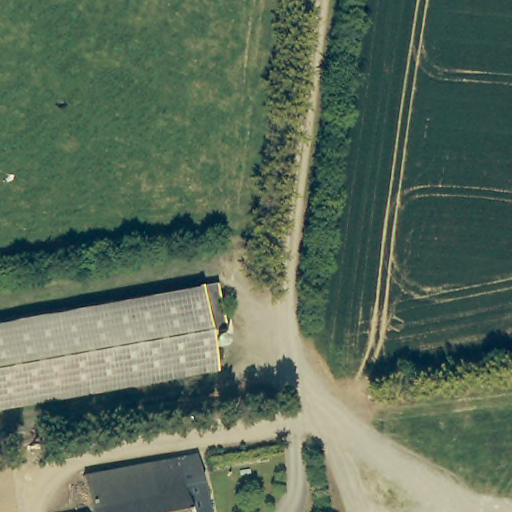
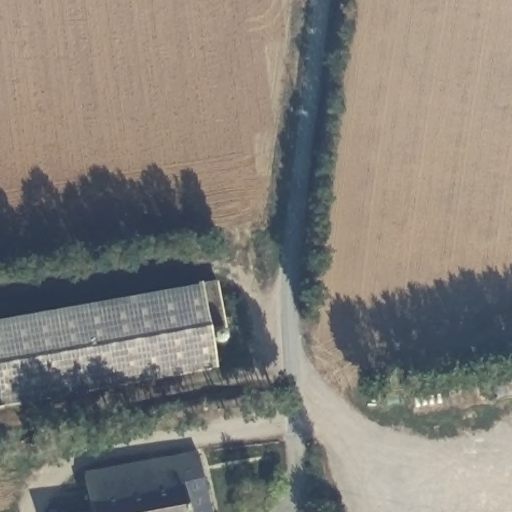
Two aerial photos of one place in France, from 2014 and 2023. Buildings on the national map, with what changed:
unchanged [(220,281),(228,326),(212,329),(218,366),(0,405),(0,321),(220,281)]
unchanged [(85,475),(180,461),(201,458),(206,489),(210,512),(90,512),(85,475)]

